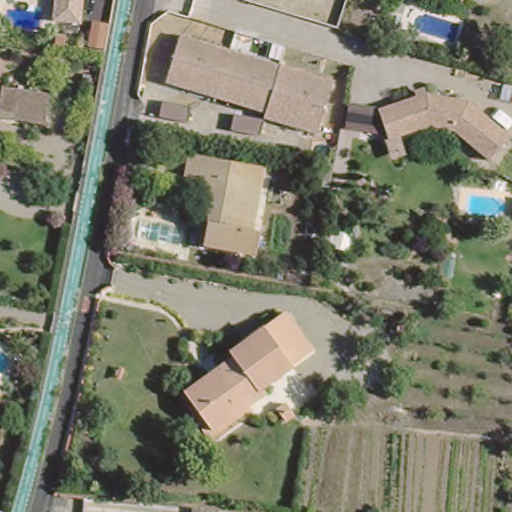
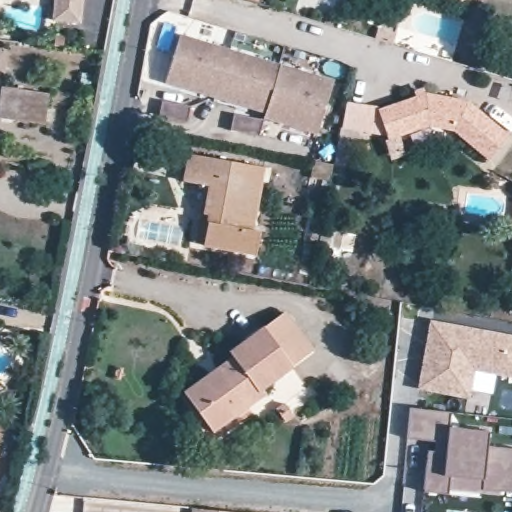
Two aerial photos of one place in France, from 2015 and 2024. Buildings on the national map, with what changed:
unchanged [(52,17),(54,0),(84,0),(83,19),(52,17)]
unchanged [(165,77),(180,32),(330,77),(317,126),(265,110),(265,107),(247,102),(182,82),(165,77)]
unchanged [(45,124),(0,119),(0,91),(0,87),(48,92),(45,124)]
unchanged [(462,97),(503,132),(483,157),(449,127),(423,122),(383,136),(373,106),(421,90),(462,97)]
new [(161,102),(190,107),(186,125),(157,119),(161,102)]
unchanged [(202,186),(184,183),(189,155),(265,169),(250,253),(202,244),(192,242),(202,186)]
unchanged [(320,191),(322,180),(310,177),(313,162),(332,166),(327,192),(320,191)]
unchanged [(197,383),(232,357),(228,352),(286,311),(313,350),(260,387),(265,395),(213,433),(192,405),(184,393),(197,383)]
new [(476,372),(470,398),(418,390),(430,321),(512,336),(512,379),(476,372)]
new [(500,492),(500,497),(449,491),(448,495),(423,492),(429,451),(434,452),(435,441),(407,439),(410,410),(453,415),(452,428),(488,432),(487,447),(512,450),(512,492),(500,492)]
unchanged [(192,508),(230,512),(192,512),(192,508)]

